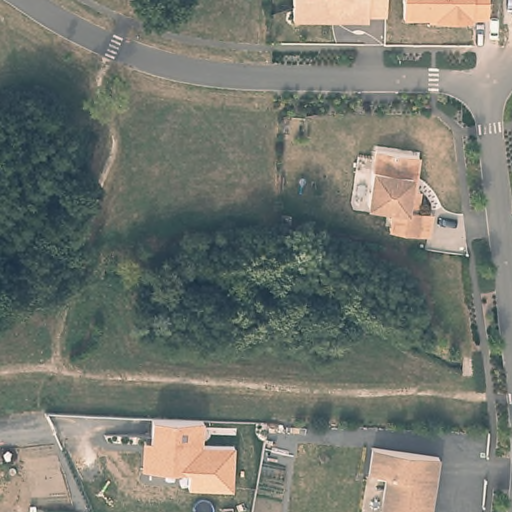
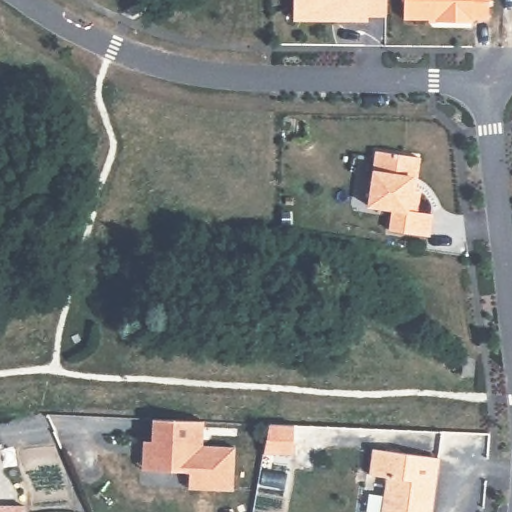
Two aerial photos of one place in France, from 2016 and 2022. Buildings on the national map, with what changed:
unchanged [(368,16),(368,21),(293,18),(294,0),(387,0),(387,16),(368,16)]
unchanged [(485,0),(485,21),(469,20),(468,23),(432,23),(432,20),(400,19),(400,0),(485,0)]
unchanged [(419,158),(415,179),(411,179),(409,189),(418,191),(415,212),(430,215),(427,237),(388,230),(392,209),(367,205),(373,170),(377,150),(419,158)]
unchanged [(151,441),(152,419),(204,423),(202,446),(236,449),(233,492),(188,488),(188,472),(142,469),(142,441),(151,441)]
unchanged [(440,456),(430,512),(381,512),(387,474),(370,471),(374,446),(440,456)]
unchanged [(24,512),(0,512),(0,504),(24,504),(24,512)]

